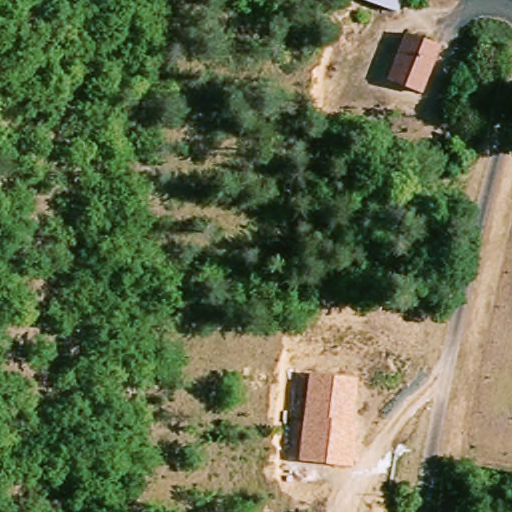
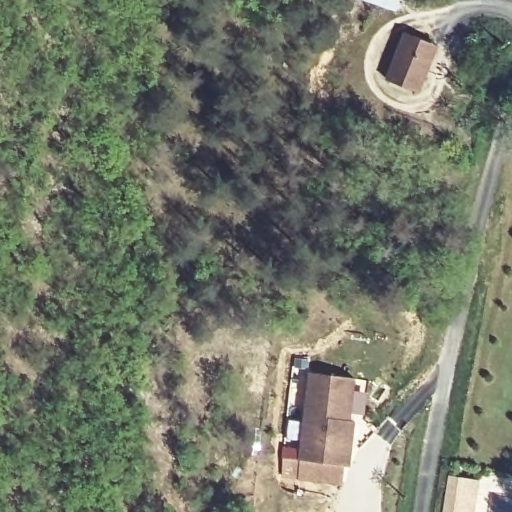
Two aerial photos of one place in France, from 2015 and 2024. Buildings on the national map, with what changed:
unchanged [(442,41),(432,95),(392,88),(401,34),(442,41)]
unchanged [(352,419),(358,421),(352,468),(298,461),(308,371),(357,378),(352,419)]
new [(481,481),(476,512),(444,512),(449,476),(481,481)]

